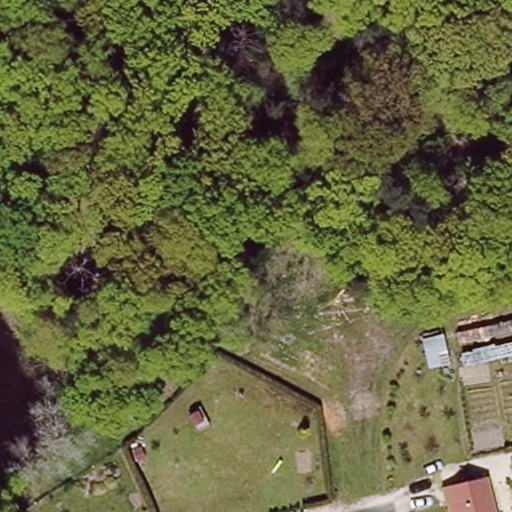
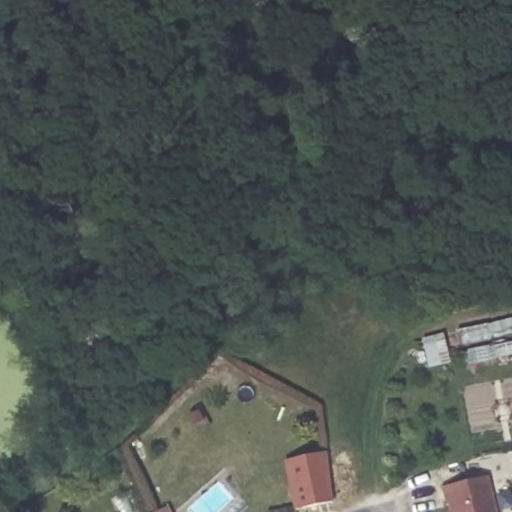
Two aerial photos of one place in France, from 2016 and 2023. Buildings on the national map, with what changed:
new [(444,334),(451,363),(429,368),(423,339),(444,334)]
new [(328,452),(333,503),(293,511),(284,461),(328,452)]
unchanged [(451,508),(447,487),(492,476),(500,512),(457,512),(456,507),(451,508)]

